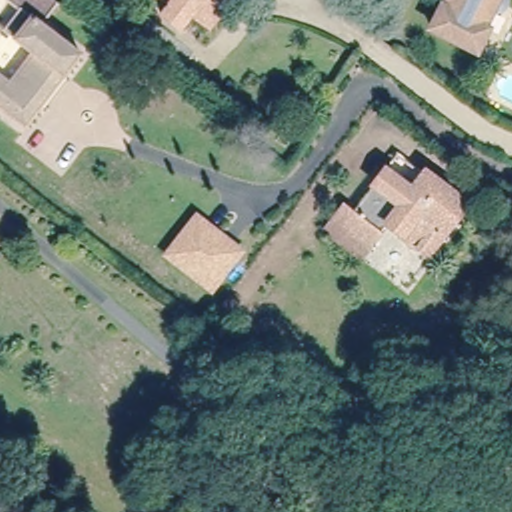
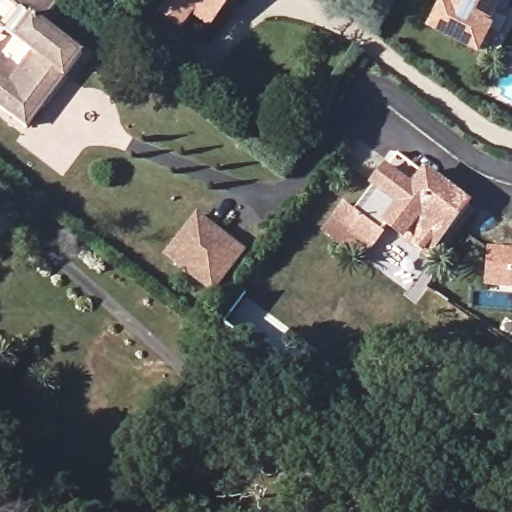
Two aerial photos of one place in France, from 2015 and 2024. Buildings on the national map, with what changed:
unchanged [(44,21),(35,13),(23,5),(22,4),(15,0),(57,0),(60,2),(44,21)]
unchanged [(220,9),(210,22),(193,9),(183,23),(164,9),(171,0),(239,0),(228,15),(220,9)]
unchanged [(504,1),(504,3),(503,4),(502,5),(501,7),(500,7),(499,8),(497,9),(495,9),(494,9),(492,9),(490,8),(481,25),(484,26),(473,47),(428,25),(441,0),(505,0),(504,1)]
unchanged [(0,103),(0,71),(11,79),(33,50),(4,27),(22,4),(23,5),(83,52),(65,75),(45,101),(27,124),(0,103)]
unchanged [(330,232),(351,205),(359,211),(389,172),(416,192),(430,173),(471,204),(431,257),(391,227),(375,248),(348,227),(339,238),(330,232)]
unchanged [(246,245),(217,282),(172,248),(201,211),(246,245)]
unchanged [(431,257),(406,290),(366,260),(375,248),(391,227),(431,257)]
new [(485,287),(487,247),(512,249),(512,288),(485,287)]
unchanged [(0,472),(0,463),(4,467),(0,472)]

